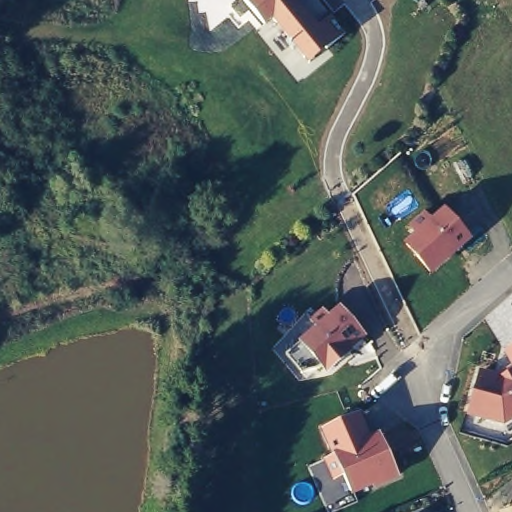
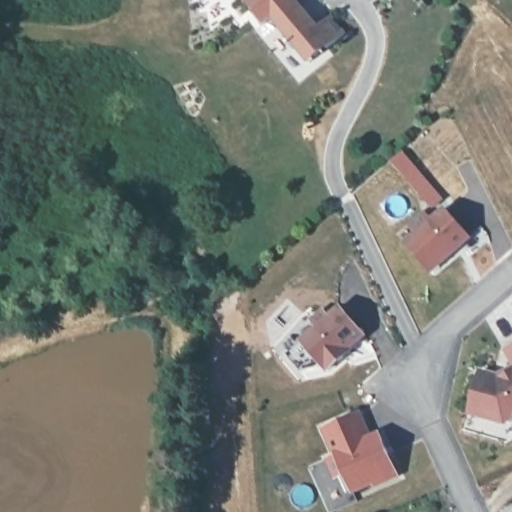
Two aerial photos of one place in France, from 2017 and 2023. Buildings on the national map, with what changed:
unchanged [(318,24),(332,13),(345,31),(308,65),(272,18),(263,25),(244,0),(299,0),(318,24)]
unchanged [(413,232),(406,222),(423,209),(429,218),(446,206),(470,237),(431,273),(403,241),(413,232)]
unchanged [(325,371),(297,340),(313,327),(308,318),(320,308),(325,316),(340,305),(366,335),(325,371)]
unchanged [(512,345),(512,368),(502,350),(512,345)]
unchanged [(512,369),(512,419),(504,424),(465,413),(477,366),(500,375),(512,369)]
unchanged [(368,434),(377,430),(398,476),(353,495),(342,472),(332,478),(323,458),(332,453),(320,427),(357,409),(368,434)]

